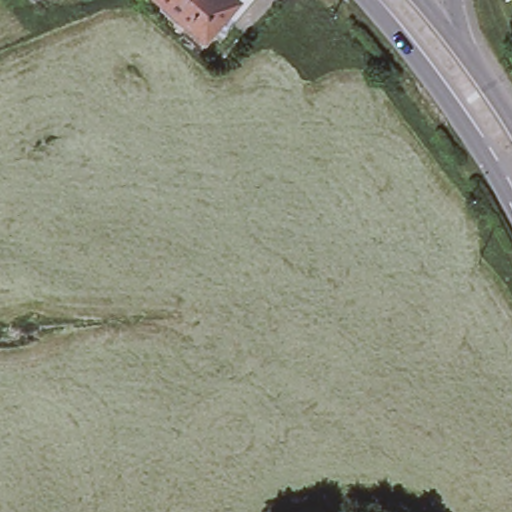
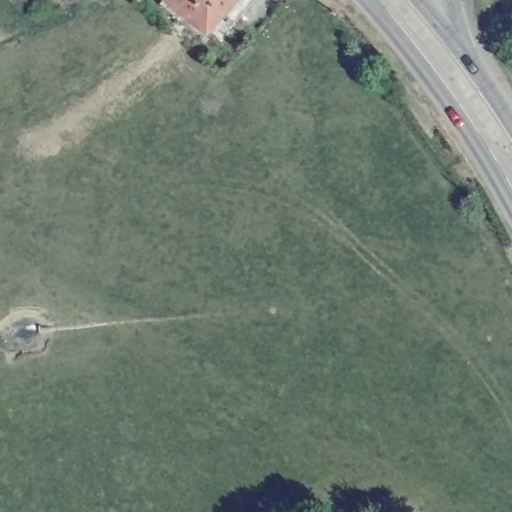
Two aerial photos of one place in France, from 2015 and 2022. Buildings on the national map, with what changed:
unchanged [(208,30),(173,0),(233,0),(208,30)]

